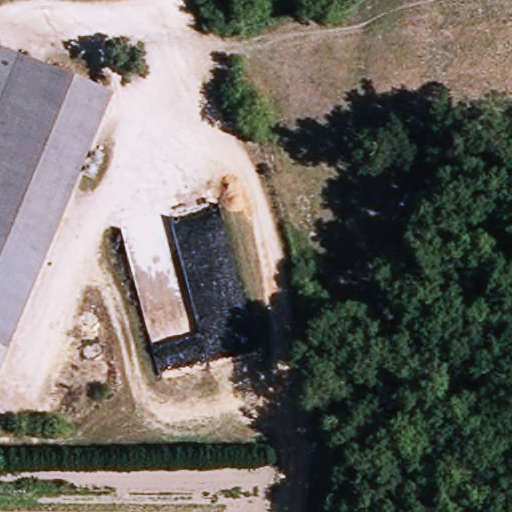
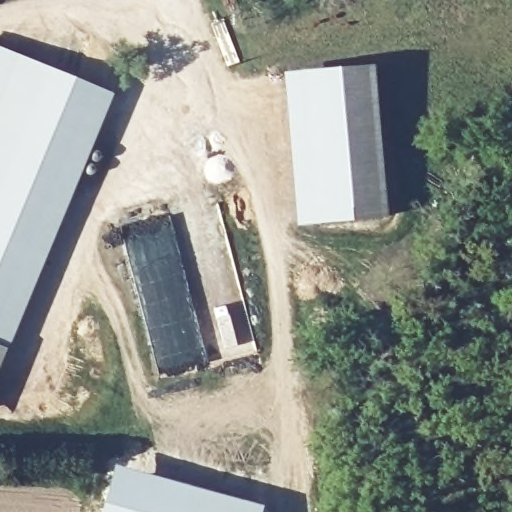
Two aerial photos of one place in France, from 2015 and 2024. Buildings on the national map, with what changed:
unchanged [(114,92),(10,347),(0,371),(0,47),(114,92)]
new [(374,66),(387,218),(297,226),(282,74),(374,66)]
new [(116,464),(263,505),(262,512),(102,512),(116,464)]

